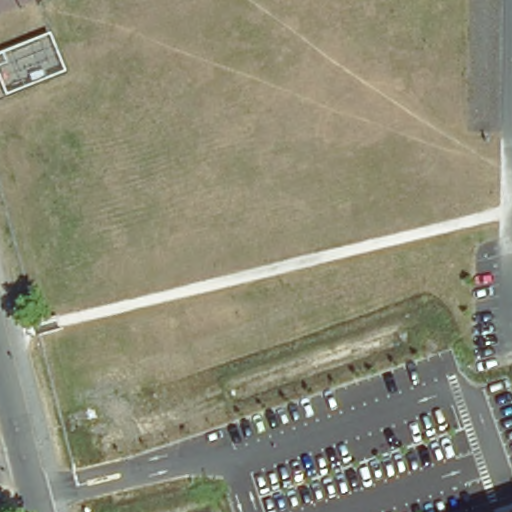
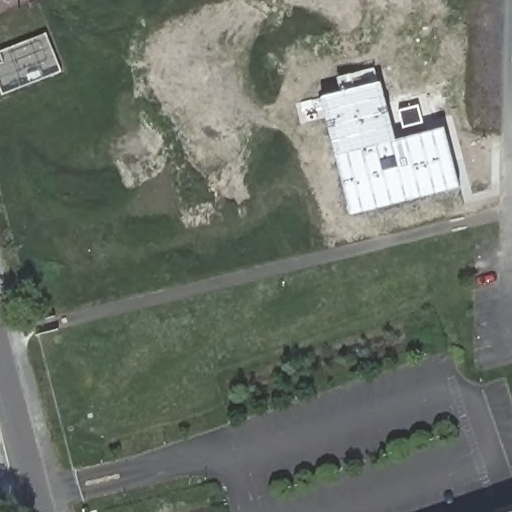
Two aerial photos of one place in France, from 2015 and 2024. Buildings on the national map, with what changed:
unchanged [(41,35),(56,72),(9,92),(0,69),(0,51),(41,35)]
new [(321,96),(341,91),(337,77),(376,68),(380,82),(382,81),(397,139),(445,126),(461,187),(352,214),(321,96)]

